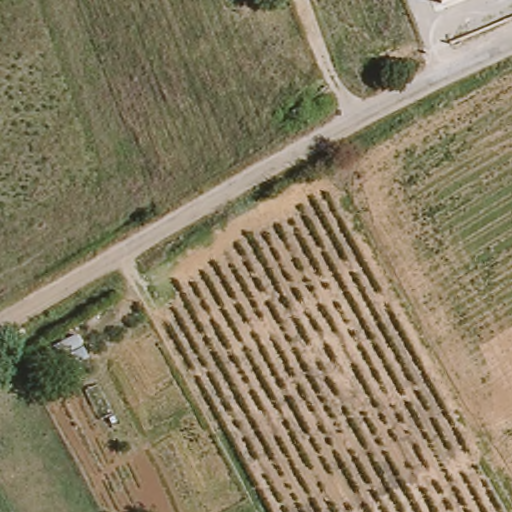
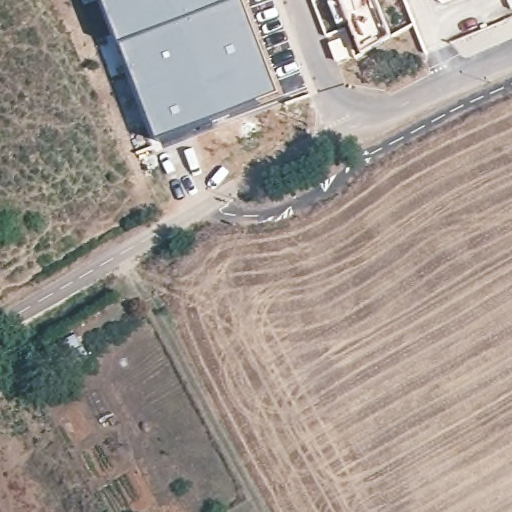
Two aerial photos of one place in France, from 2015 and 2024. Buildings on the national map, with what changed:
new [(283,95),(233,116),(159,141),(104,0),(246,0),(283,95)]
new [(394,36),(361,54),(349,27),(339,30),(328,0),(380,0),(394,36)]
unchanged [(444,7),(441,0),(459,0),(444,7)]

